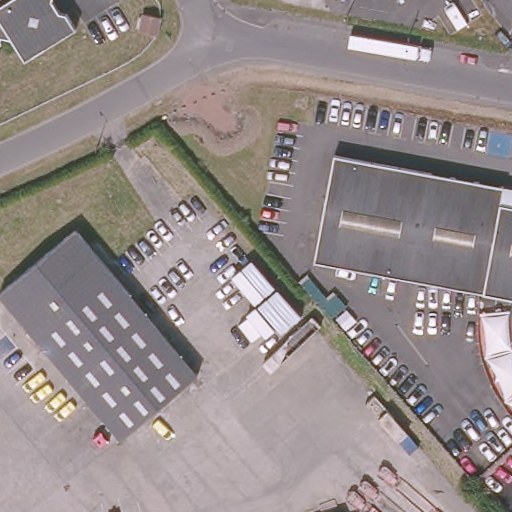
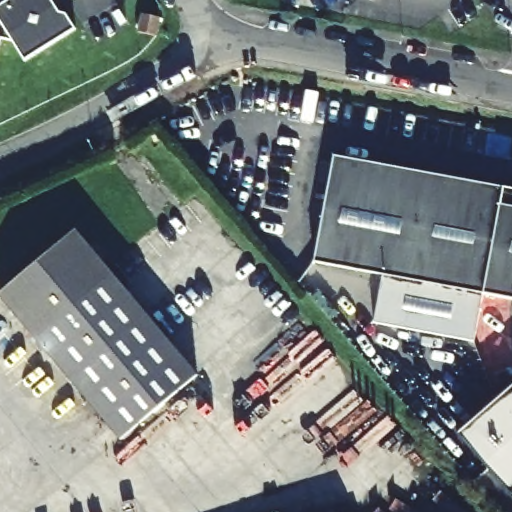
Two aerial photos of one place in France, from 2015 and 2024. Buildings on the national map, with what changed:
unchanged [(76,28),(25,59),(18,46),(0,42),(0,0),(58,0),(76,28)]
unchanged [(163,19),(160,39),(141,36),(143,15),(163,19)]
unchanged [(344,157),(512,188),(512,199),(511,206),(512,207),(512,298),(324,263),(344,157)]
new [(512,199),(512,207),(511,206),(512,199)]
unchanged [(148,417),(119,442),(0,298),(0,294),(75,232),(158,333),(166,342),(194,377),(168,400),(148,417)]
new [(482,292),(473,339),(375,321),(383,274),(482,292)]
new [(458,433),(512,387),(512,489),(509,491),(458,433)]

